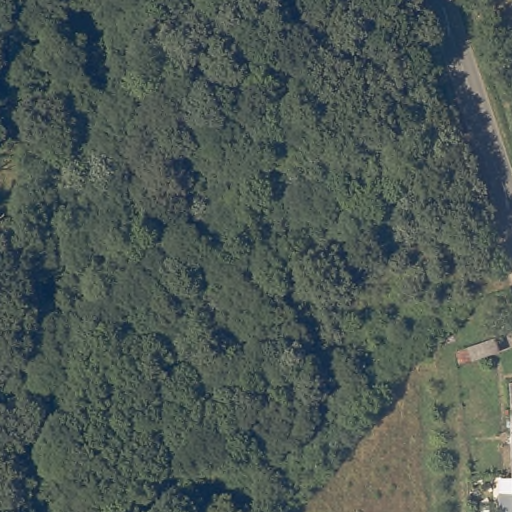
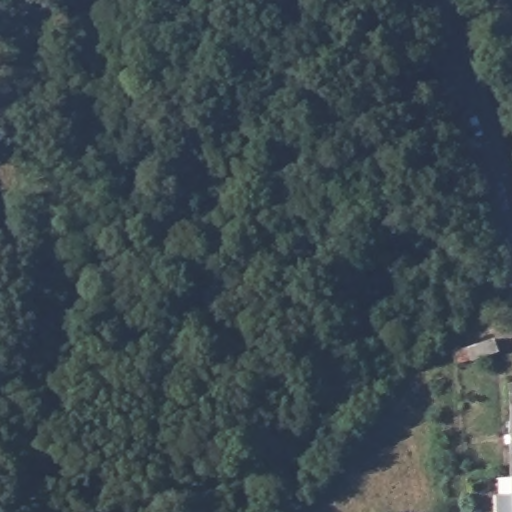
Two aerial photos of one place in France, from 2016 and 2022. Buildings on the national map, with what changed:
unchanged [(462,311),(466,315),(462,321),(457,315),(462,311)]
unchanged [(494,341),(498,355),(472,361),(469,349),(494,341)]
unchanged [(510,383),(512,384),(512,477),(511,477),(509,476),(510,383)]
unchanged [(511,477),(512,477),(512,495),(511,477)]
unchanged [(498,512),(498,495),(512,495),(512,512),(498,512)]

